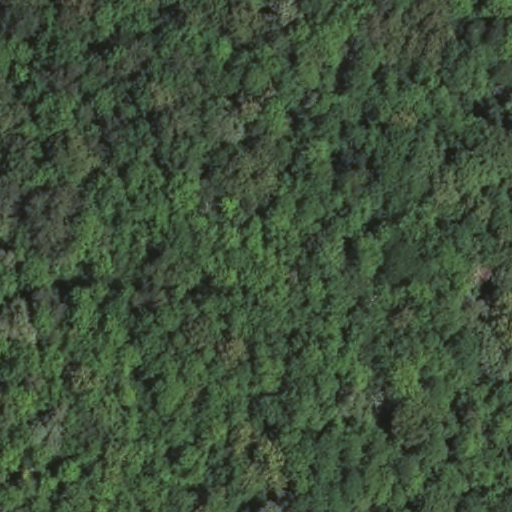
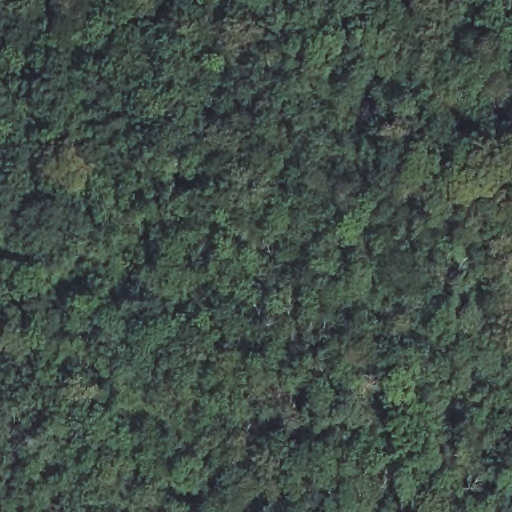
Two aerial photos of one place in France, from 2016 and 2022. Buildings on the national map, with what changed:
[]

